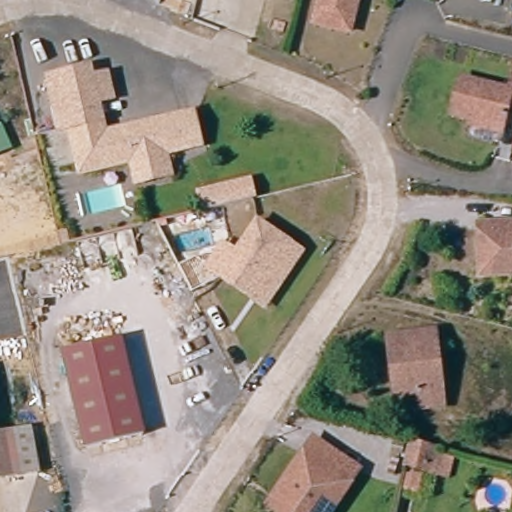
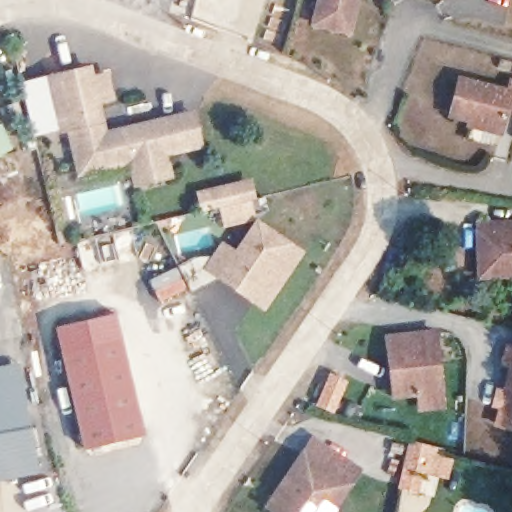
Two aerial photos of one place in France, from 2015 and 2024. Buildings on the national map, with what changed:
unchanged [(310,30),(317,0),(354,0),(346,37),(310,30)]
unchanged [(432,0),(449,0),(447,5),(432,0)]
unchanged [(138,186),(134,170),(132,164),(81,176),(70,131),(62,133),(49,81),(88,71),(91,81),(107,77),(112,101),(97,104),(105,137),(178,118),(192,115),(200,147),(186,150),(166,155),(167,162),(171,177),(138,186)]
unchanged [(512,92),(512,116),(506,114),(501,130),(455,119),(462,84),(511,94),(512,92)]
unchanged [(252,182),(256,198),(257,199),(207,210),(203,193),(252,182)]
unchanged [(250,297),(206,267),(222,243),(234,252),(256,220),(301,251),(285,274),(263,306),(250,297)]
unchanged [(478,239),(477,232),(512,229),(512,280),(484,283),(478,239)]
unchanged [(420,410),(418,398),(399,400),(388,339),(432,329),(442,394),(444,407),(420,410)]
unchanged [(66,350),(125,337),(148,435),(89,449),(66,350)]
new [(492,406),(496,388),(505,389),(510,362),(502,361),(505,345),(512,347),(512,430),(494,426),(498,408),(492,406)]
new [(32,430),(0,436),(0,366),(20,362),(32,430)]
unchanged [(32,430),(40,475),(0,482),(0,436),(32,430)]
unchanged [(271,508),(278,497),(305,454),(313,439),(359,469),(351,482),(340,499),(332,512),(276,512),(271,508)]
unchanged [(410,440),(431,444),(447,447),(442,474),(426,471),(424,470),(419,493),(398,489),(404,466),(410,440)]

